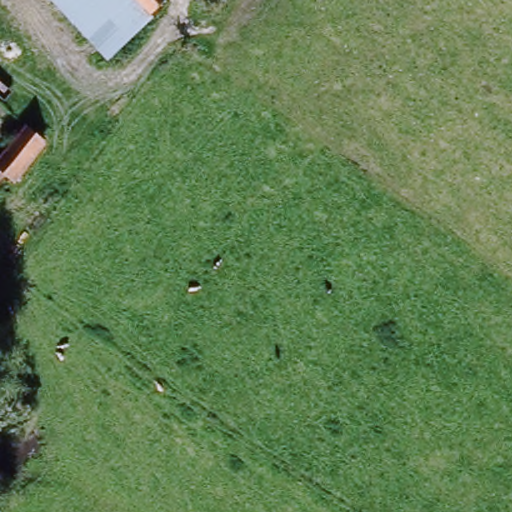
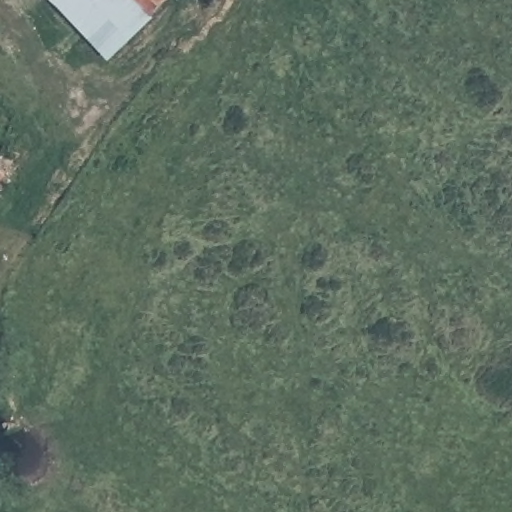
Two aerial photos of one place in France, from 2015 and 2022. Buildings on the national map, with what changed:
unchanged [(131,2),(90,42),(51,0),(171,0),(148,22),(131,2)]
unchanged [(198,0),(205,0),(202,5),(198,0)]
unchanged [(142,19),(112,52),(99,38),(127,7),(142,19)]
unchanged [(41,145),(10,183),(2,177),(0,180),(0,157),(24,130),(41,145)]

